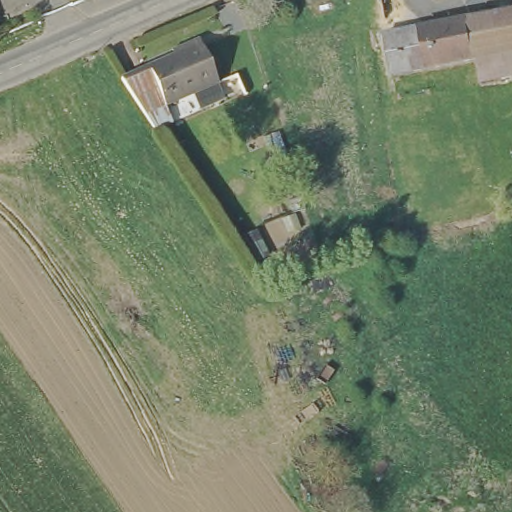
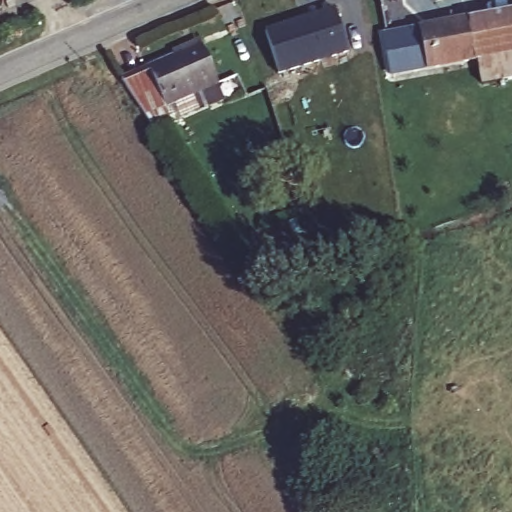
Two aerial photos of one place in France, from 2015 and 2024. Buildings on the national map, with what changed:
demolished [(398,0),(401,16),(386,20),(383,0),(398,0)]
unchanged [(478,60),(428,71),(396,78),(389,35),(395,34),(408,31),(512,10),(512,82),(484,86),(478,60)]
new [(336,12),(349,55),(281,78),(266,36),(336,12)]
unchanged [(123,84),(203,50),(216,79),(159,101),(168,128),(157,132),(123,84)]

